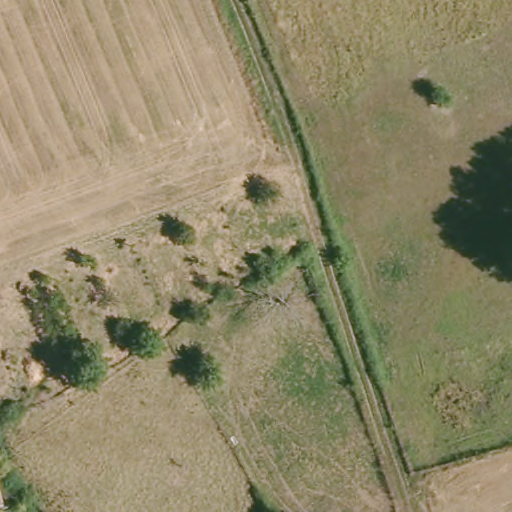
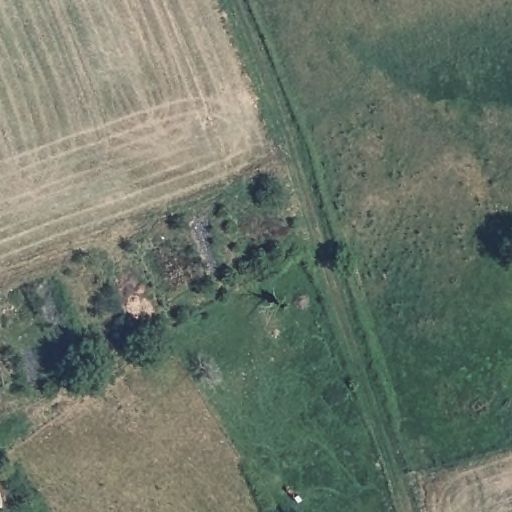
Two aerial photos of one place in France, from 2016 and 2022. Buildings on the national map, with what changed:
unchanged [(0,506),(0,490),(5,505),(0,506)]

